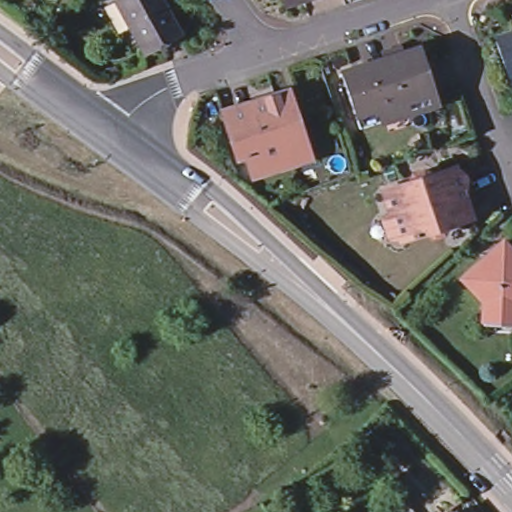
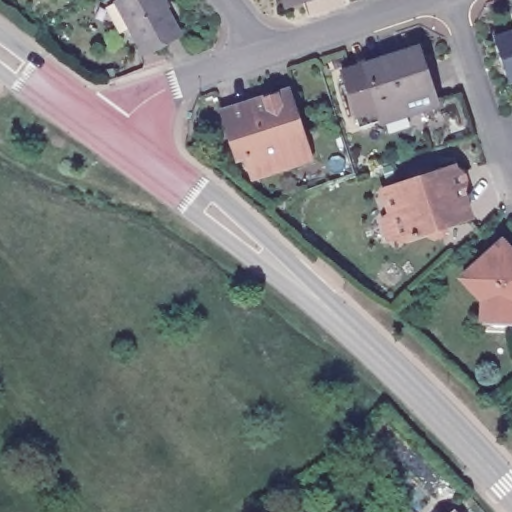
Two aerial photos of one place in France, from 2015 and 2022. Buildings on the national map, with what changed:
unchanged [(135,47),(110,3),(116,0),(155,0),(170,29),(175,37),(140,57),(135,47)]
unchanged [(281,0),(311,0),(284,9),(281,0)]
unchanged [(512,29),(512,79),(507,81),(492,36),(512,29)]
unchanged [(416,45),(433,98),(407,107),(402,97),(380,104),(378,104),(365,62),(416,45)]
unchanged [(378,104),(380,104),(385,116),(359,125),(340,70),(365,62),(378,104)]
unchanged [(293,162),(252,176),(245,154),(237,157),(223,116),(261,103),(265,97),(287,89),(303,135),(310,157),(293,162)]
unchanged [(404,182),(403,180),(407,174),(415,172),(422,175),(422,177),(445,169),(447,172),(450,172),(454,174),(457,182),(455,186),(452,187),(461,214),(438,222),(440,225),(437,231),(427,234),(420,231),(419,229),(395,237),(378,192),(404,182)]
unchanged [(483,326),(483,312),(485,296),(465,274),(505,237),(512,244),(512,327),(483,326)]
unchanged [(453,510),(455,512),(451,512),(453,510)]

